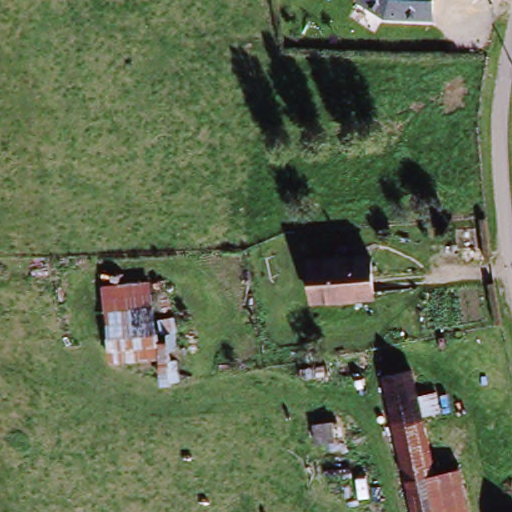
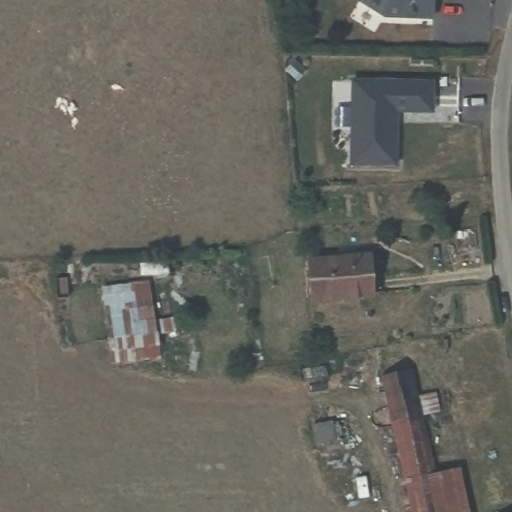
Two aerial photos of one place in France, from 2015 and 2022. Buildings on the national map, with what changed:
unchanged [(437,18),(390,16),(367,0),(438,0),(437,18)]
new [(432,110),(396,108),(393,164),(349,162),(353,76),(433,80),(432,110)]
unchanged [(368,253),(371,295),(310,301),(306,259),(368,253)]
unchanged [(150,280),(155,319),(175,317),(177,348),(170,351),(170,361),(180,360),(180,382),(161,385),(157,359),(111,363),(100,285),(150,280)]
unchanged [(416,367),(439,467),(462,462),(471,501),(474,512),(414,512),(380,375),(416,367)]

